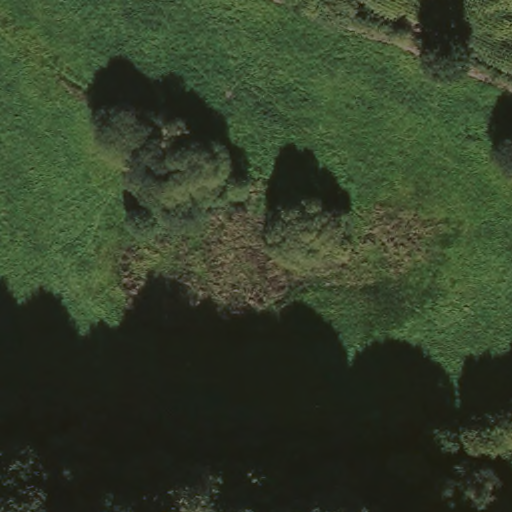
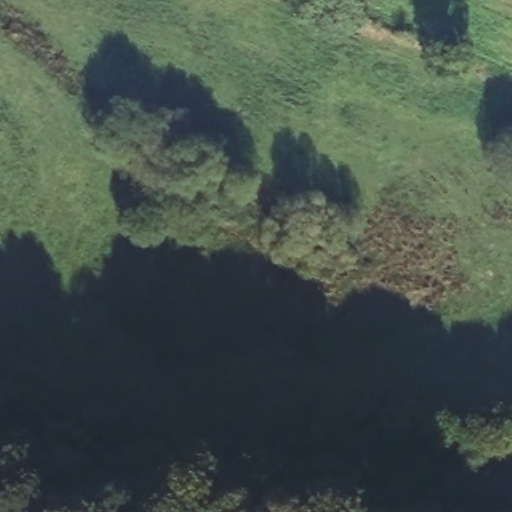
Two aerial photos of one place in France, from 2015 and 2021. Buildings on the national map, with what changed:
[]

